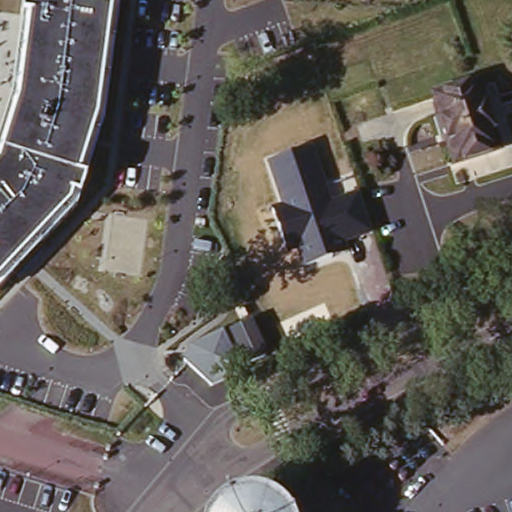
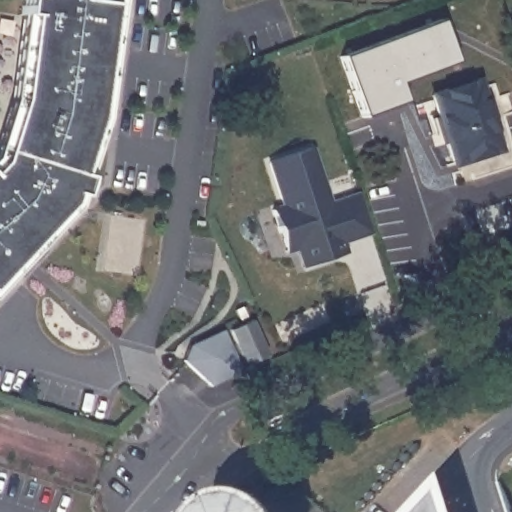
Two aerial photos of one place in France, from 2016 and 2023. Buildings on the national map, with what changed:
unchanged [(20,21),(18,20),(21,0),(99,0),(99,2),(109,2),(109,0),(119,0),(105,113),(84,177),(80,194),(76,208),(0,289),(0,119),(9,86),(20,21)]
new [(398,84),(404,101),(363,117),(341,57),(441,20),(456,62),(398,84)]
unchanged [(500,147),(455,161),(435,97),(434,93),(478,79),(480,84),(500,147)]
unchanged [(315,146),(333,201),(360,193),(375,233),(351,242),(355,253),(305,269),(300,253),(288,256),(272,209),(281,206),(267,163),(315,146)]
unchanged [(265,353),(246,362),(229,324),(248,316),(265,353)]
unchanged [(186,347),(222,329),(242,366),(211,384),(183,360),(186,347)]
demolished [(0,498),(4,485),(44,498),(40,512),(0,512),(0,498)]
new [(443,489),(451,512),(422,512),(443,489)]

